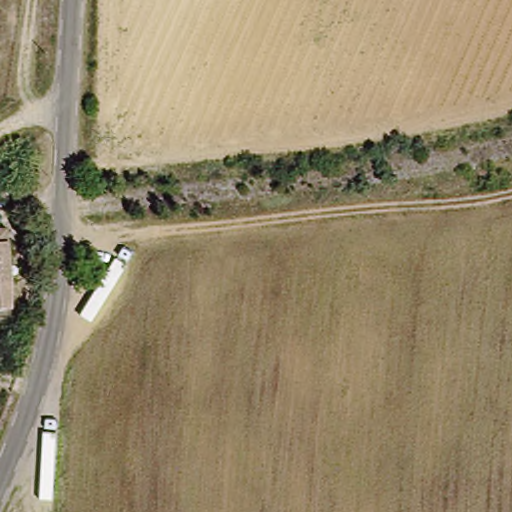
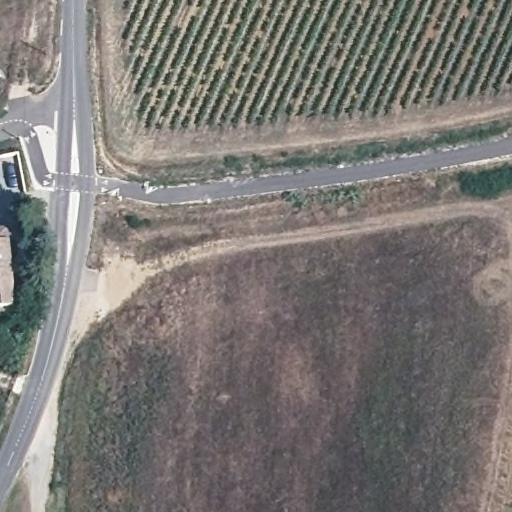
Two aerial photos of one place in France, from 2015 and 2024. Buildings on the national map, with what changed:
unchanged [(0,246),(11,244),(16,288),(13,291),(15,314),(0,316),(0,246)]

